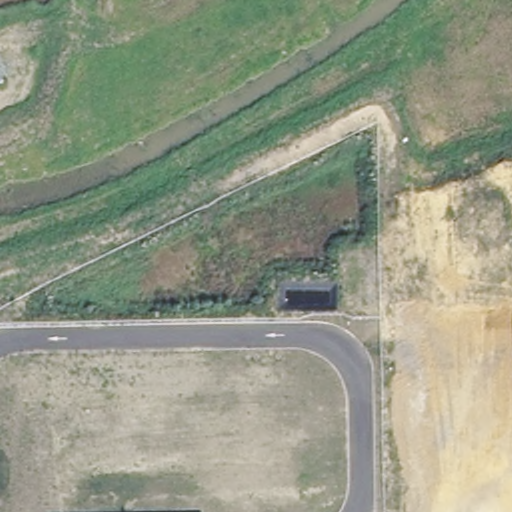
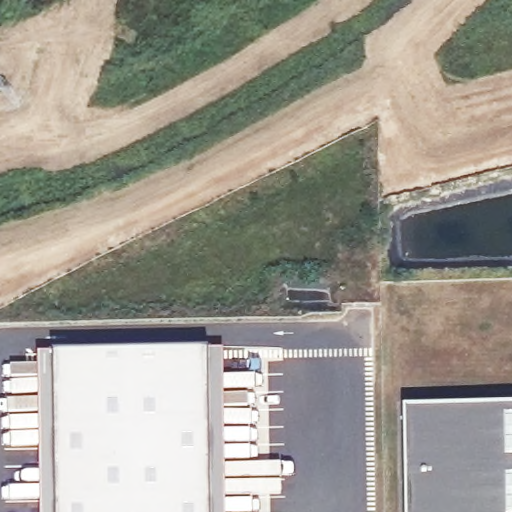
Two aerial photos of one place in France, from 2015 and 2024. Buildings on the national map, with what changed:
new [(38,354),(55,354),(208,352),(223,352),(226,512),(41,512),(38,354)]
new [(406,409),(512,405),(512,512),(407,512),(406,409)]

